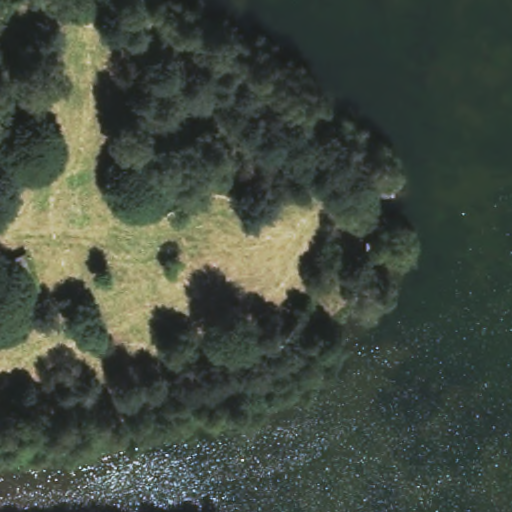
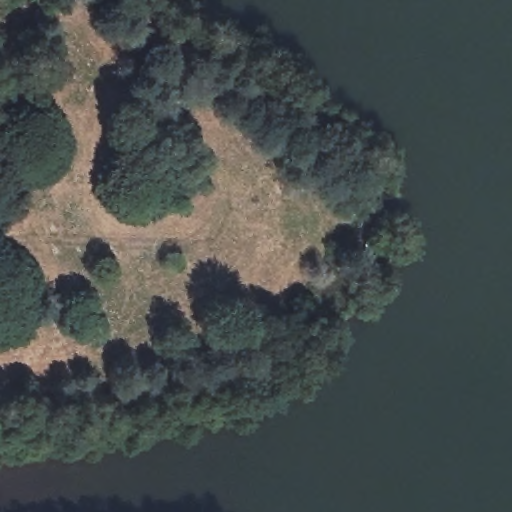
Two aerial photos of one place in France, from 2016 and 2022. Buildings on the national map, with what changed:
unchanged [(27,248),(42,288),(14,298),(0,260),(0,258),(12,254),(27,248)]

